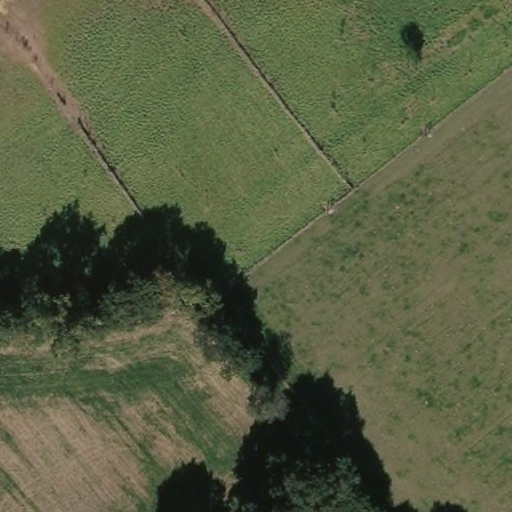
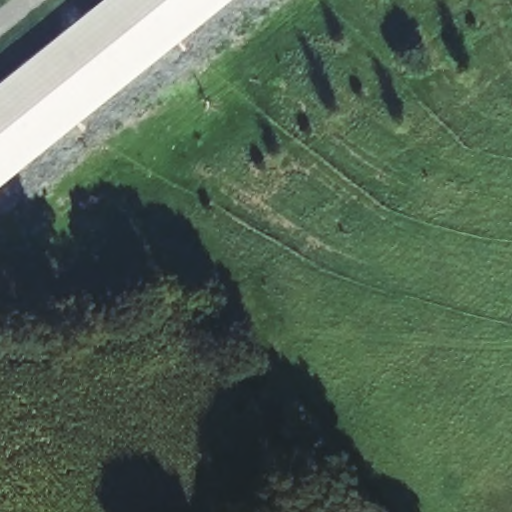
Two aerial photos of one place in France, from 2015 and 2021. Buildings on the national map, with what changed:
new [(104,0),(230,0),(0,185),(0,84),(104,0)]
demolished [(351,5),(357,0),(496,0),(398,71),(351,5)]
demolished [(434,56),(512,0),(512,30),(448,77),(434,56)]

